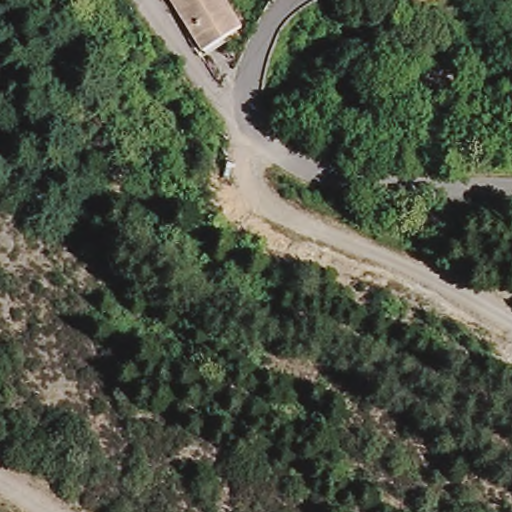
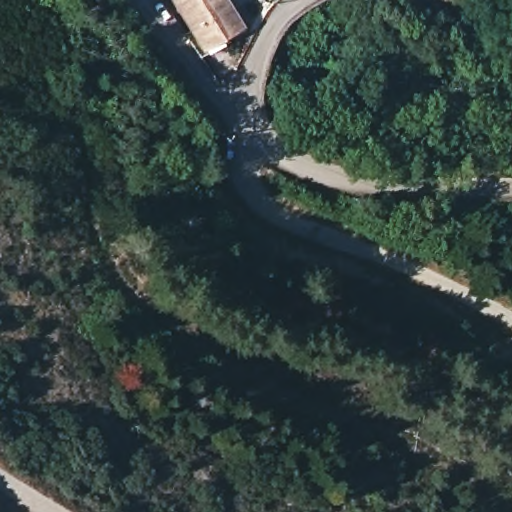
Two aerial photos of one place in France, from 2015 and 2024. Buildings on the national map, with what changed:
unchanged [(223,42),(210,50),(179,0),(229,0),(247,28),(239,33),(223,42)]

